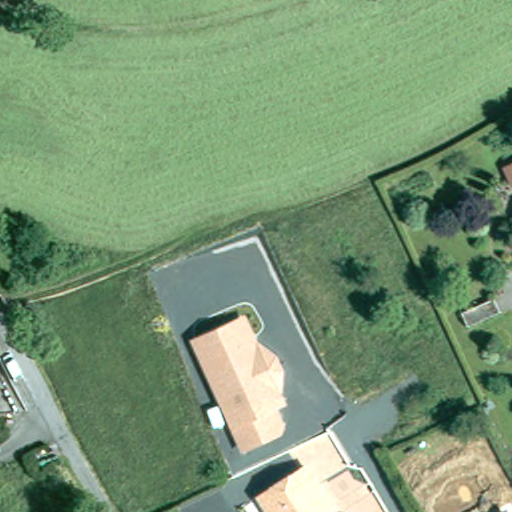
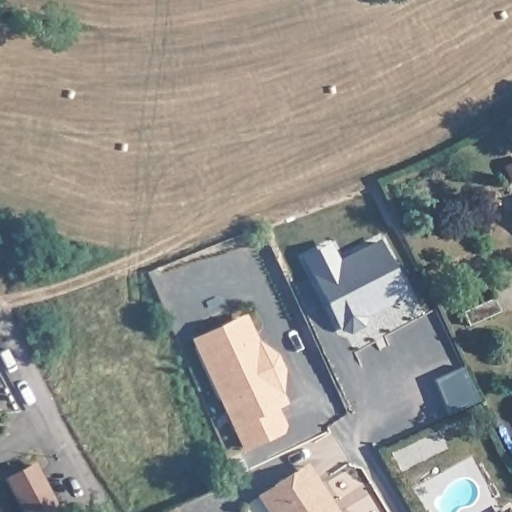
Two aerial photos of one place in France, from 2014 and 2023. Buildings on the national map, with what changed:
new [(332,241),(340,257),(381,238),(408,295),(366,316),(364,325),(351,332),(341,329),(302,255),(332,241)]
unchanged [(479,335),(472,320),(504,304),(511,318),(479,335)]
unchanged [(259,335),(277,352),(289,367),(284,392),(288,402),(281,407),(289,425),(286,432),(243,451),(193,339),(248,313),(259,335)]
unchanged [(343,512),(270,512),(259,493),(311,461),(343,512)]
new [(23,512),(4,477),(34,462),(61,512),(23,512)]

